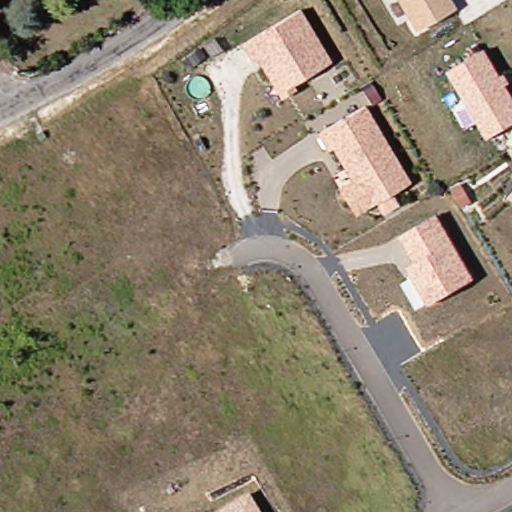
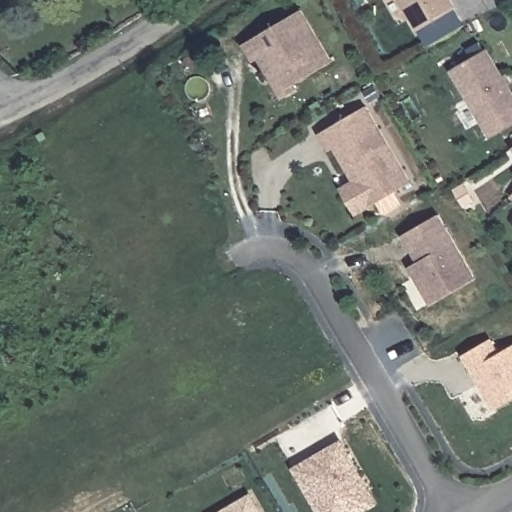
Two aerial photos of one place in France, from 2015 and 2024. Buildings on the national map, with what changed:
unchanged [(401,0),(451,0),(456,7),(418,29),(401,0)]
unchanged [(283,98),(274,83),(264,67),(259,58),(254,61),(243,45),(301,10),(332,61),(293,85),(297,90),(283,98)]
unchanged [(487,49),(512,91),(512,125),(491,137),(452,69),(487,49)]
unchanged [(341,189),(354,181),(347,170),(334,148),(329,151),(319,134),(366,107),(410,183),(369,207),(356,215),(341,189)]
unchanged [(418,263),(403,236),(438,215),(476,279),(432,305),(414,275),(410,268),(418,263)]
new [(465,354),(490,340),(499,354),(512,346),(512,399),(496,409),(465,354)]
new [(313,465),(319,462),(330,456),(327,450),(340,442),(376,503),(361,512),(321,512),(295,468),(310,459),(313,465)]
unchanged [(217,512),(250,494),(260,512),(217,512)]

